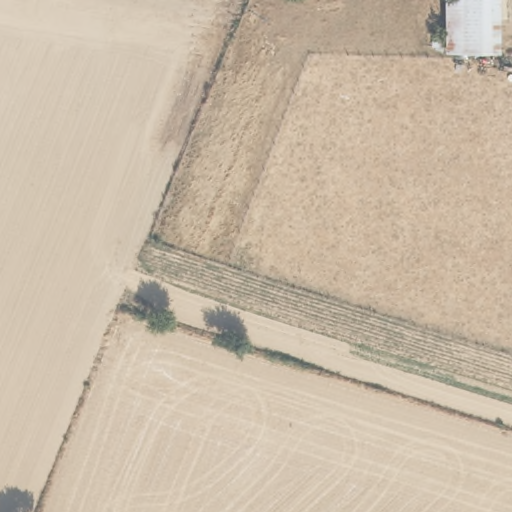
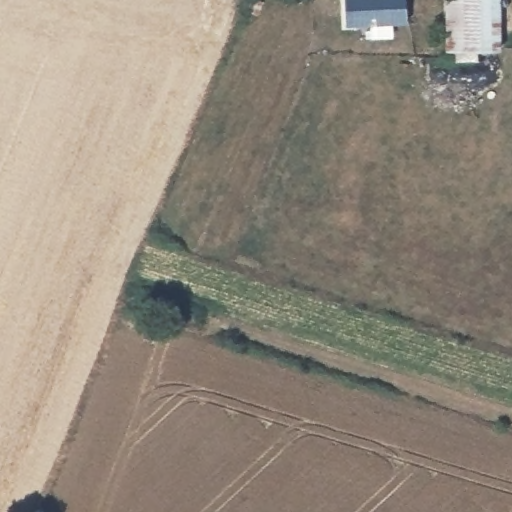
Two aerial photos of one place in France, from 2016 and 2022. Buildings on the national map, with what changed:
new [(408,22),(392,22),(393,36),(371,38),(370,24),(346,25),(344,0),(406,0),(408,22)]
unchanged [(502,50),(442,53),(444,0),(501,0),(502,50)]

